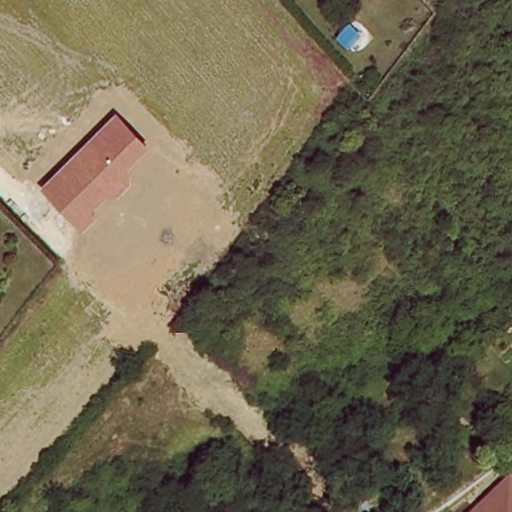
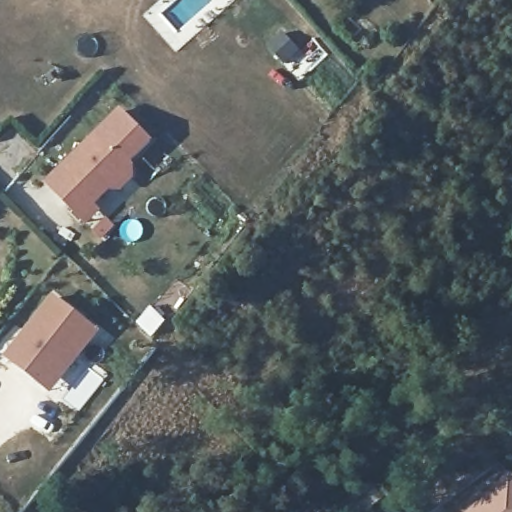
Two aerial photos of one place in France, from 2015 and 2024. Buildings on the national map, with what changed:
unchanged [(154,145),(135,164),(133,183),(122,194),(110,194),(97,209),(102,214),(87,229),(45,185),(120,110),(154,145)]
new [(53,297),(101,335),(52,397),(5,360),(53,297)]
unchanged [(512,475),(512,512),(472,512),(512,475)]

